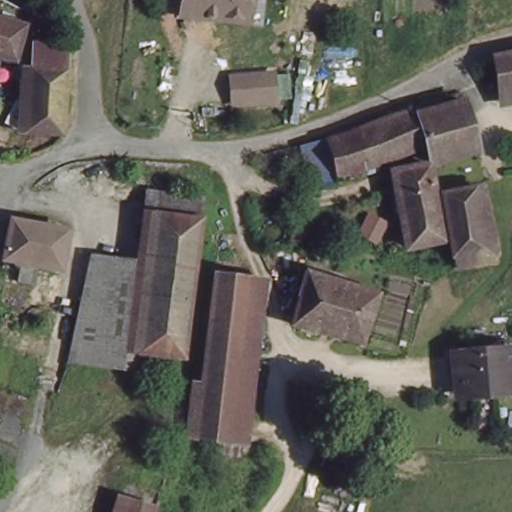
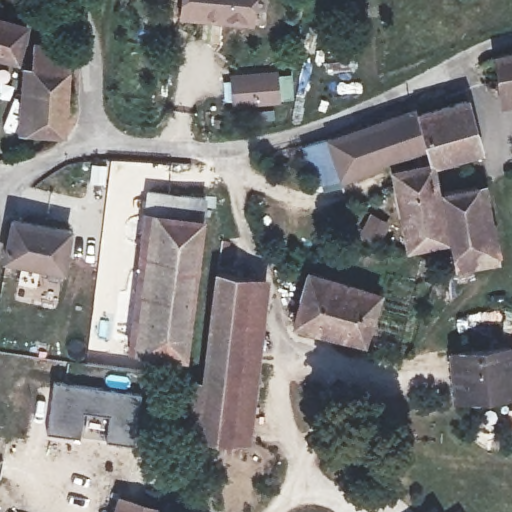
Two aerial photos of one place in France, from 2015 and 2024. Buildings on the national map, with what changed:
unchanged [(251,24),(178,17),(180,0),(253,0),(251,24)]
unchanged [(0,59),(0,19),(29,26),(22,63),(0,59)]
unchanged [(65,42),(68,137),(33,137),(33,42),(65,42)]
unchanged [(492,55),(512,51),(512,91),(499,93),(492,55)]
unchanged [(284,103),(234,105),(234,70),(284,69),(284,103)]
unchanged [(368,144),(369,156),(341,162),(335,130),(361,122),(361,117),(424,99),(425,107),(429,131),(368,144)]
unchanged [(474,142),(434,151),(429,131),(425,107),(467,100),(474,142)]
unchanged [(411,243),(396,167),(429,160),(446,235),(411,243)]
unchanged [(441,186),(474,182),(482,220),(493,218),(497,244),(453,252),(441,186)]
unchanged [(197,197),(179,361),(146,357),(136,356),(146,266),(156,193),(197,197)]
unchanged [(65,273),(42,270),(39,292),(24,290),(26,269),(6,267),(13,221),(69,227),(65,273)]
unchanged [(364,338),(294,328),(300,278),(370,287),(364,338)]
unchanged [(238,355),(233,447),(194,443),(204,279),(250,281),(252,293),(257,328),(256,355),(238,355)]
unchanged [(451,353),(509,351),(509,393),(452,395),(451,353)]
unchanged [(250,448),(233,447),(238,355),(256,355),(250,448)]
new [(51,377),(138,391),(130,443),(103,439),(106,413),(80,409),(76,435),(43,430),(51,377)]
unchanged [(151,503),(149,512),(117,512),(120,498),(151,503)]

